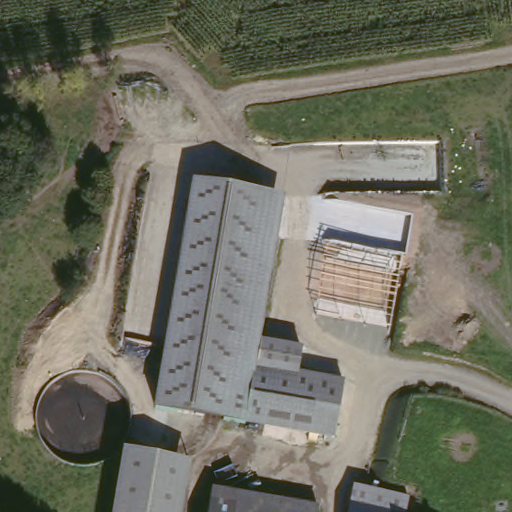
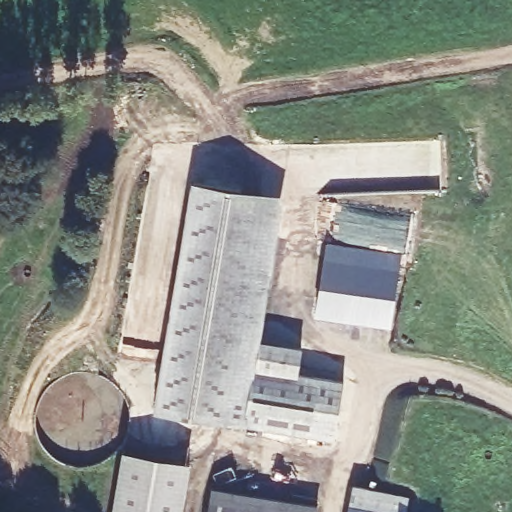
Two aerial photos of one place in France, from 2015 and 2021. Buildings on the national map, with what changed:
unchanged [(270,189),(243,358),(350,374),(341,433),(161,403),(198,177),(270,189)]
new [(326,242),(402,255),(390,329),(314,316),(326,242)]
unchanged [(179,512),(103,512),(113,452),(186,466),(179,512)]
unchanged [(320,500),(318,512),(208,512),(211,485),(320,500)]
unchanged [(348,512),(350,504),(389,512),(348,512)]

